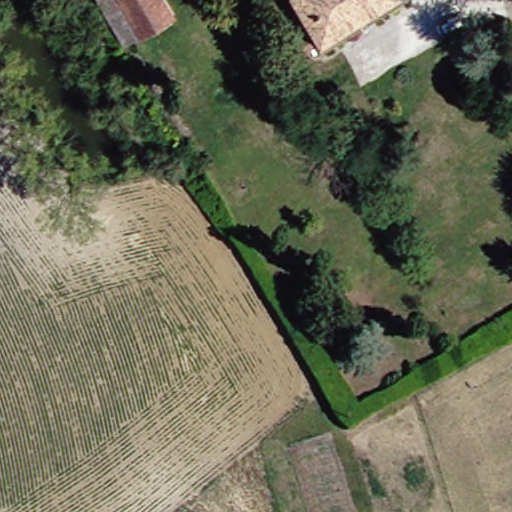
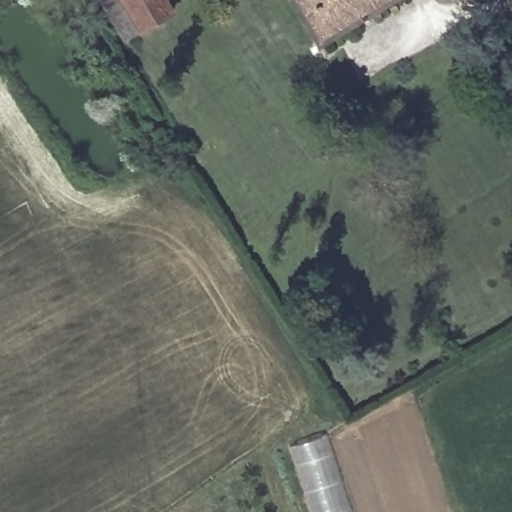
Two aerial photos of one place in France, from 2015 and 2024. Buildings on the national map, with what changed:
unchanged [(180,17),(146,37),(135,42),(113,0),(170,0),(180,17)]
unchanged [(322,46),(297,0),(401,0),(322,46)]
new [(327,438),(349,512),(310,512),(290,450),(327,438)]

